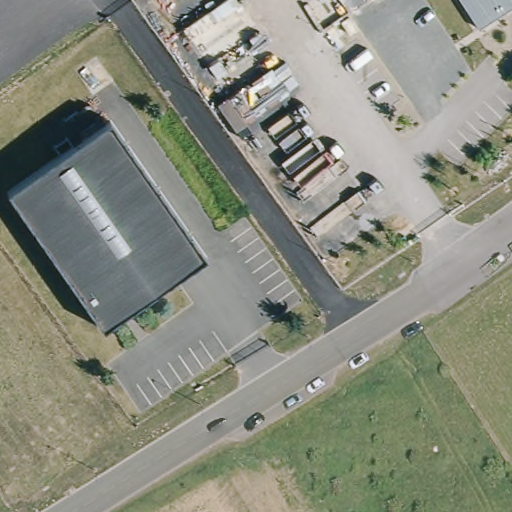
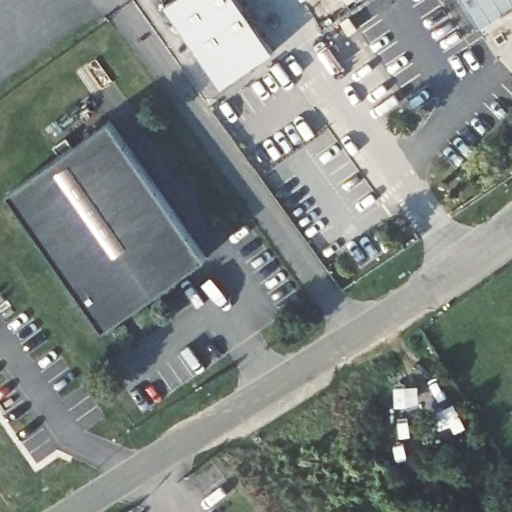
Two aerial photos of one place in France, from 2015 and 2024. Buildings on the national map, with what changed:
new [(237,0),(273,52),(222,88),(166,6),(175,0),(237,0)]
unchanged [(459,0),(512,0),(512,13),(482,34),(459,0)]
unchanged [(108,118),(205,255),(102,328),(5,191),(108,118)]

